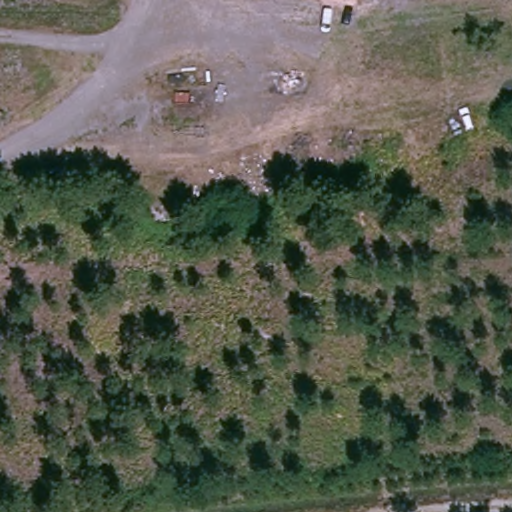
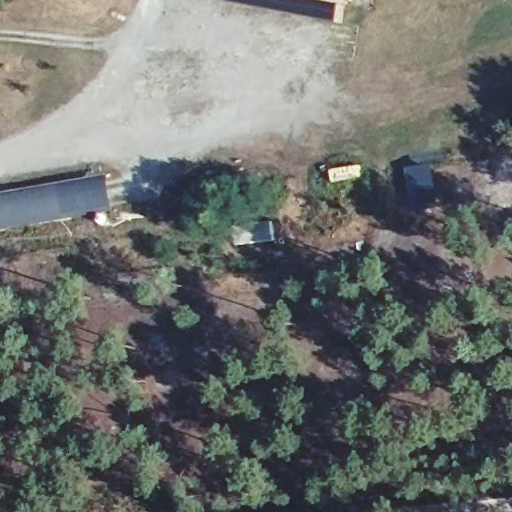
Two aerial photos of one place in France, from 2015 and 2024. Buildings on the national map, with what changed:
unchanged [(322,0),(354,0),(352,5),(322,0)]
new [(0,231),(0,194),(110,176),(116,209),(0,231)]

